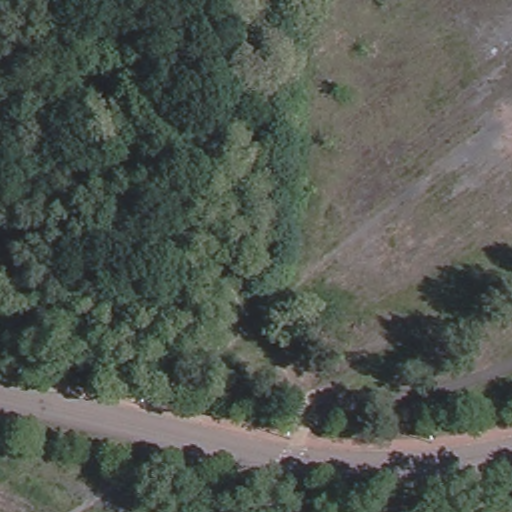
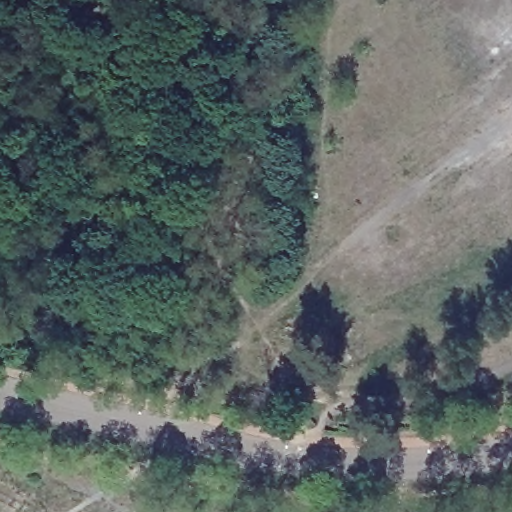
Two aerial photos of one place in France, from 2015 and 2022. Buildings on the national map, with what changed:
[]

